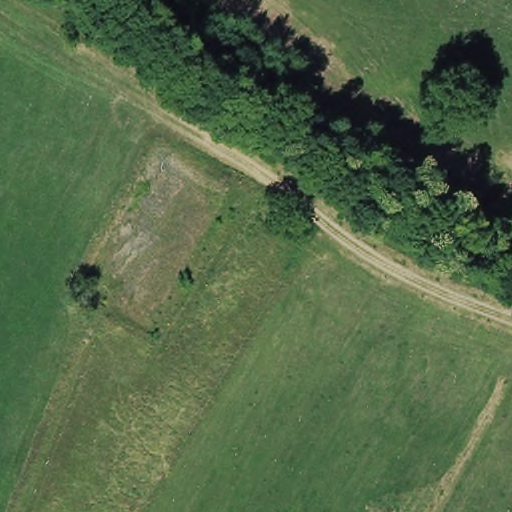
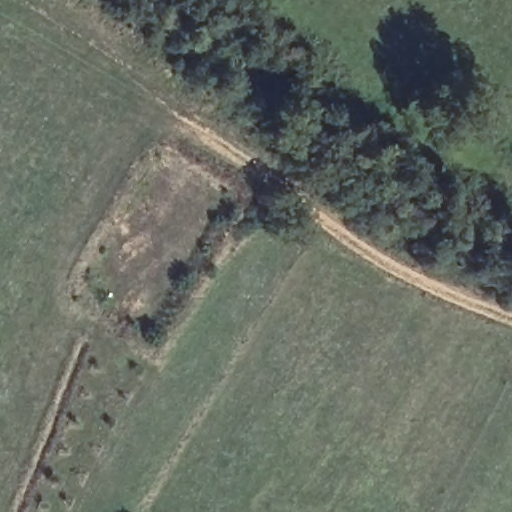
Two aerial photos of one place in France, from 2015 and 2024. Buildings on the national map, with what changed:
[]

